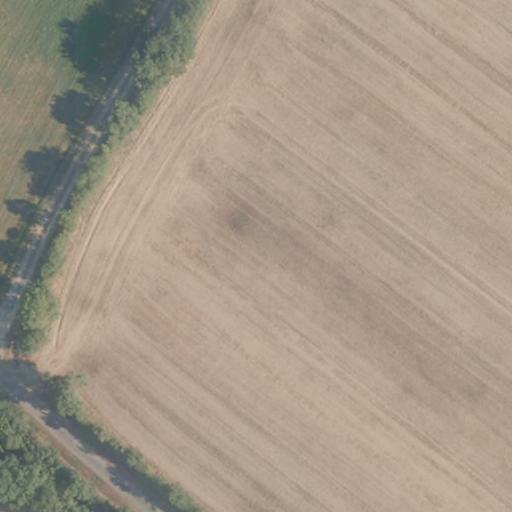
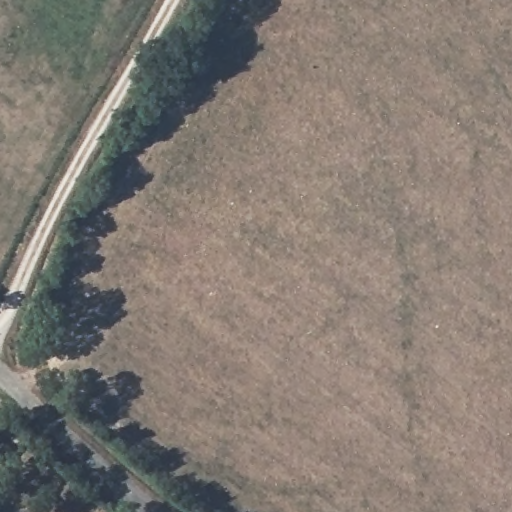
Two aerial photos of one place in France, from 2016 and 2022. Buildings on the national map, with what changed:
[]

